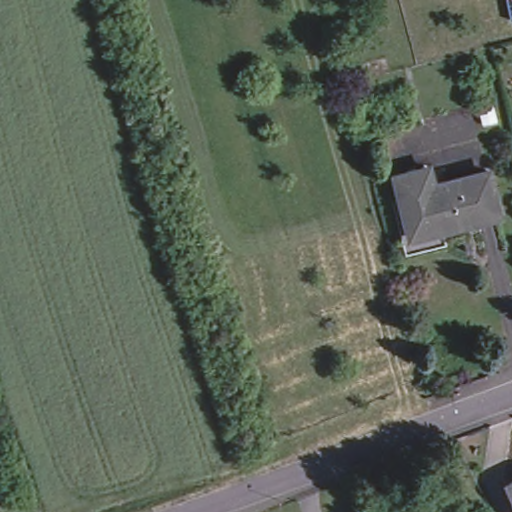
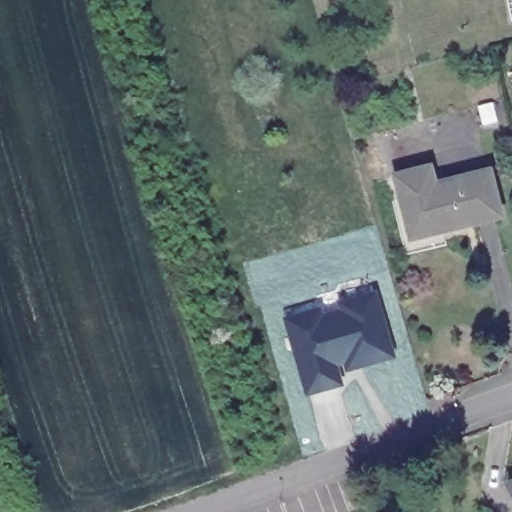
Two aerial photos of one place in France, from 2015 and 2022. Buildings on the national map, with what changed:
unchanged [(504,0),(512,0),(512,17),(507,18),(504,0)]
unchanged [(414,179),(428,175),(433,191),(445,188),(457,232),(446,235),(448,238),(444,240),(440,228),(429,231),(414,179)]
unchanged [(445,188),(485,177),(497,221),(457,232),(445,188)]
unchanged [(410,236),(395,184),(414,179),(429,231),(410,236)]
new [(396,358),(341,372),(343,385),(305,395),(282,317),(321,306),(323,313),(339,309),(337,301),(378,291),(396,358)]
unchanged [(512,476),(512,481),(510,477),(512,476)]

